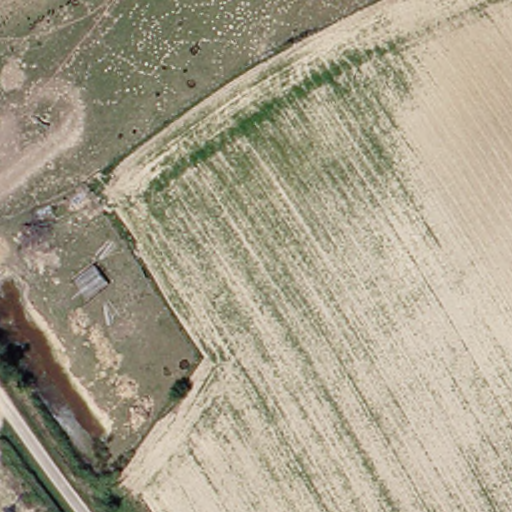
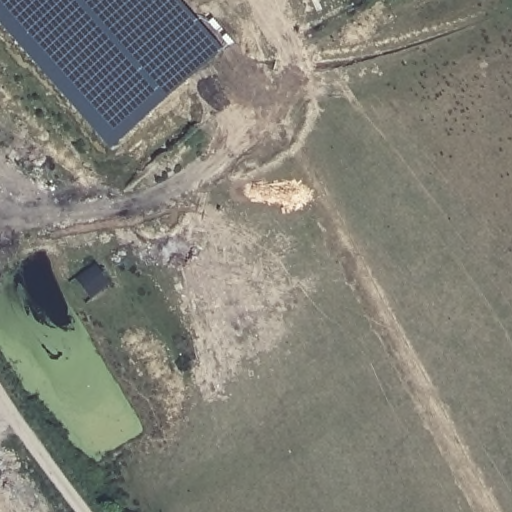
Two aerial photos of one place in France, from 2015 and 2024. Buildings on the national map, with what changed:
new [(224,50),(112,148),(0,21),(0,0),(180,0),(224,50)]

